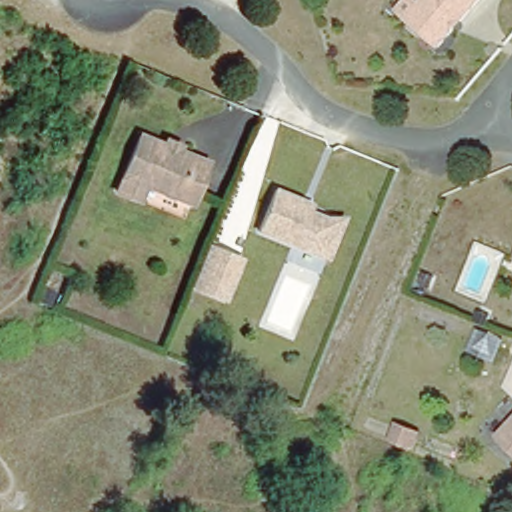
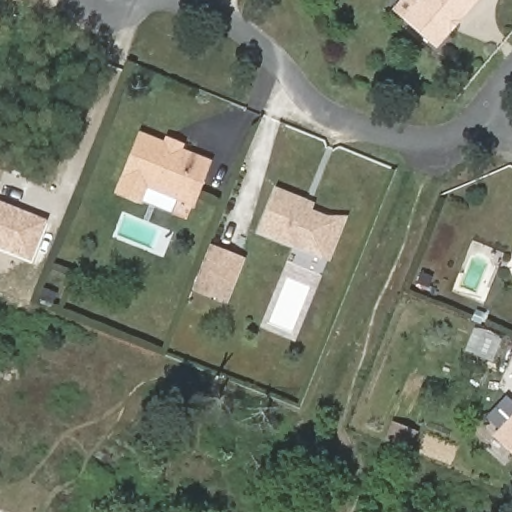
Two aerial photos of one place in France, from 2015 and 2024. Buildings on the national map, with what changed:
unchanged [(477,0),(439,47),(404,20),(421,0),(477,0)]
unchanged [(189,207),(144,192),(139,203),(118,195),(139,140),(165,149),(167,141),(185,147),(182,155),(206,163),(189,207)]
unchanged [(327,261),(317,258),(258,236),(273,195),(297,205),(342,220),(327,261)]
new [(30,262),(0,250),(0,202),(46,221),(30,262)]
unchanged [(240,262),(223,305),(191,292),(208,250),(240,262)]
unchanged [(492,436),(512,417),(512,455),(492,436)]

